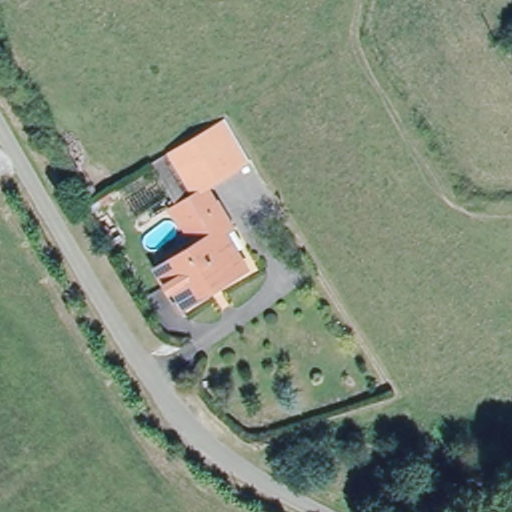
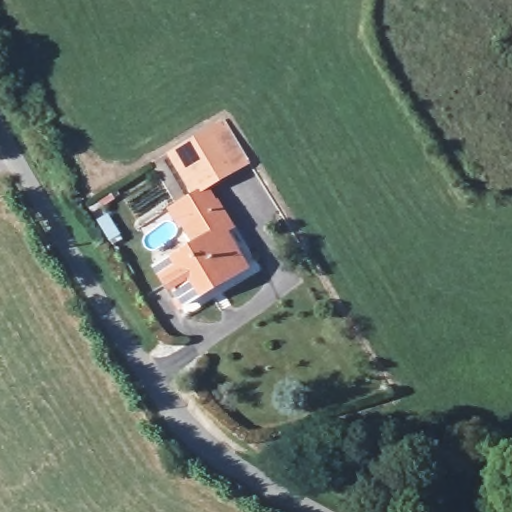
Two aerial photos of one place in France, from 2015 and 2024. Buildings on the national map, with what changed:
unchanged [(217,120),(246,164),(232,169),(203,187),(176,146),(217,120)]
unchanged [(176,146),(203,187),(187,199),(159,158),(176,146)]
unchanged [(198,244),(185,224),(218,203),(233,224),(226,229),(249,263),(189,303),(164,265),(198,244)]

